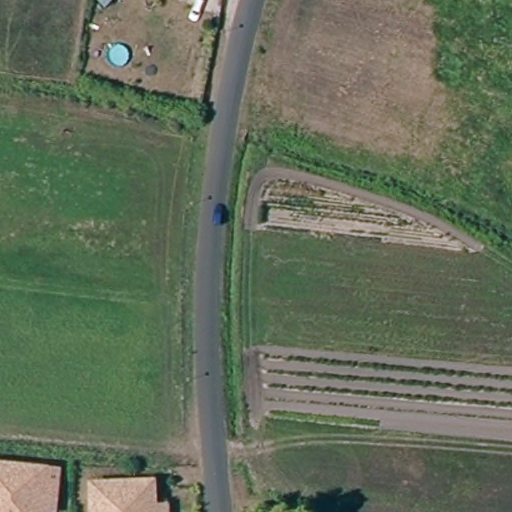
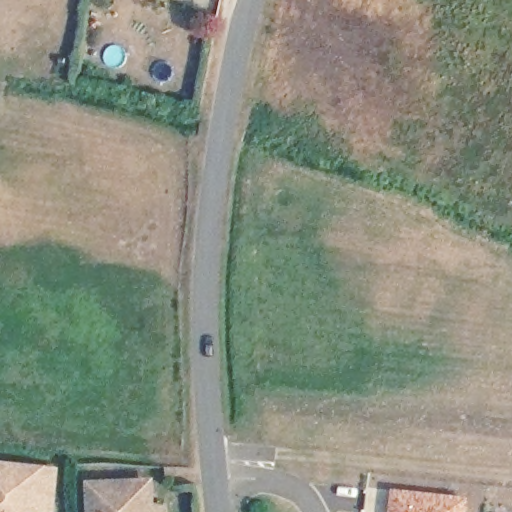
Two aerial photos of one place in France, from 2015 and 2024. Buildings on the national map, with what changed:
unchanged [(1,464),(26,466),(43,468),(40,490),(55,491),(53,510),(39,509),(38,512),(0,512),(0,464),(1,464)]
unchanged [(109,488),(134,487),(150,486),(151,508),(165,507),(166,512),(93,512),(92,488),(109,488)]
new [(470,496),(468,512),(391,512),(393,489),(470,496)]

